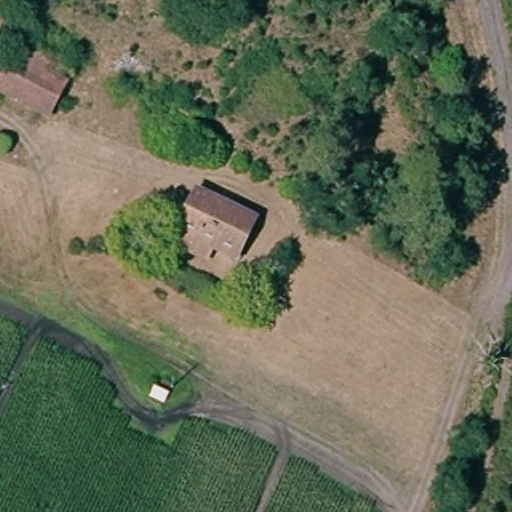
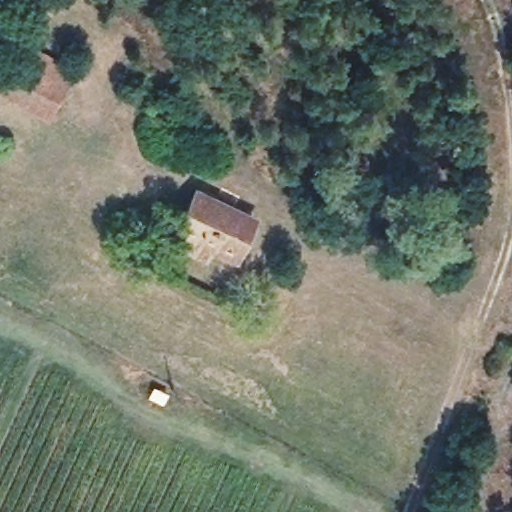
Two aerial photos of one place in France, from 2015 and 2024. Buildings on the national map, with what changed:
unchanged [(64,80),(48,119),(0,98),(0,56),(7,40),(57,62),(52,75),(64,80)]
unchanged [(230,265),(165,236),(183,197),(245,225),(230,265)]

